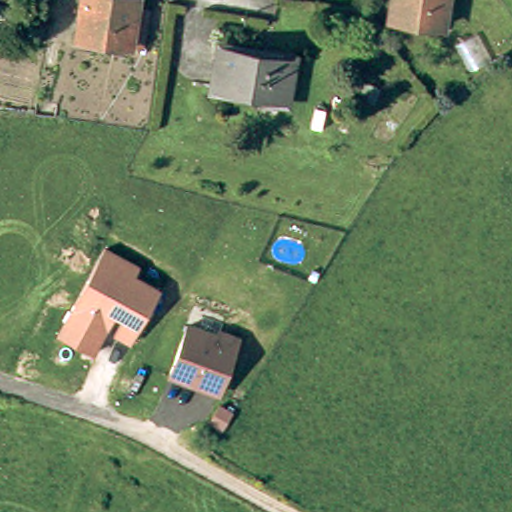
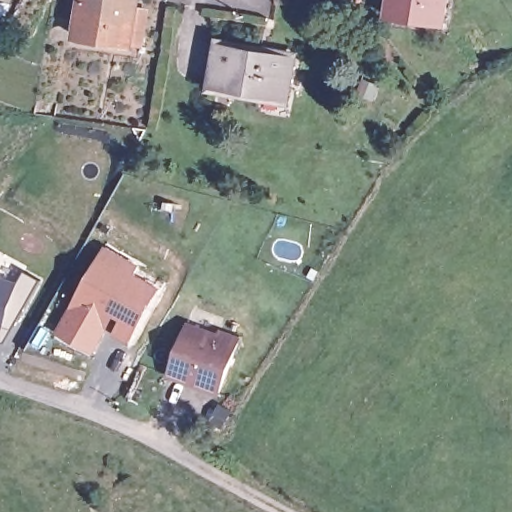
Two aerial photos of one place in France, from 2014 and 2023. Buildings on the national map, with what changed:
unchanged [(139,2),(137,14),(148,16),(145,51),(79,41),(85,0),(130,0),(139,2)]
unchanged [(445,27),(392,20),(395,0),(449,0),(445,27)]
unchanged [(294,62),(287,102),(217,90),(225,49),(294,62)]
unchanged [(55,87),(52,101),(60,102),(58,115),(37,112),(42,85),(55,87)]
unchanged [(161,288),(130,344),(112,335),(120,320),(115,317),(107,332),(93,355),(57,333),(70,310),(106,246),(141,265),(135,275),(161,288)]
new [(30,260),(48,266),(6,342),(0,341),(0,272),(25,276),(30,260)]
unchanged [(187,323),(237,339),(220,396),(168,376),(187,323)]

